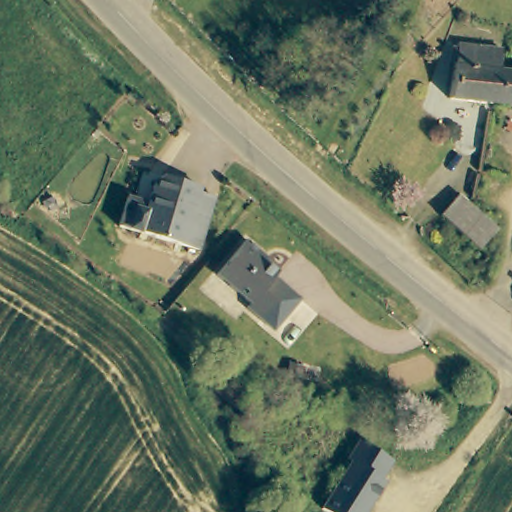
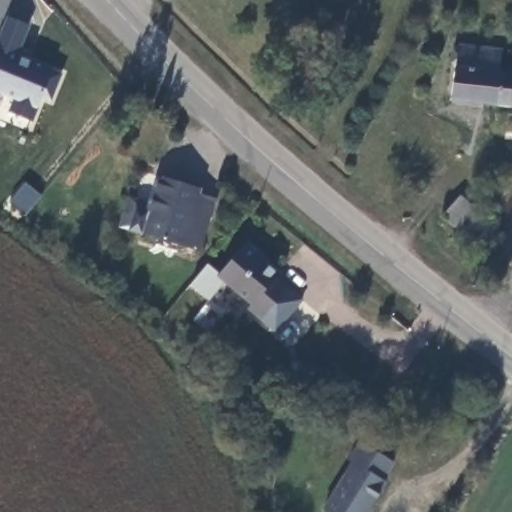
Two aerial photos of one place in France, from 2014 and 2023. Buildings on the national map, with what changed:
new [(19,54),(62,71),(50,102),(40,98),(33,120),(9,110),(13,99),(0,93),(0,34),(7,16),(30,25),(19,54)]
unchanged [(495,70),(492,108),(449,103),(455,48),(497,52),(495,70)]
unchanged [(500,71),(512,72),(512,110),(492,108),(495,70),(500,71)]
unchanged [(151,208),(158,187),(166,181),(204,193),(202,198),(218,203),(202,255),(123,231),(131,203),(151,208)]
unchanged [(460,196),(470,206),(500,229),(477,253),(440,218),(460,196)]
unchanged [(260,258),(281,276),(276,280),(303,302),(278,334),(249,312),(252,309),(218,280),(247,244),(262,256),(260,258)]
unchanged [(386,480),(366,512),(331,512),(322,506),(352,460),(349,456),(360,439),(393,459),(382,476),(386,480)]

